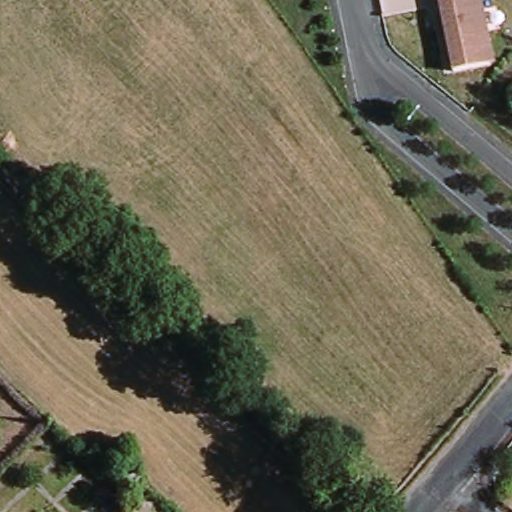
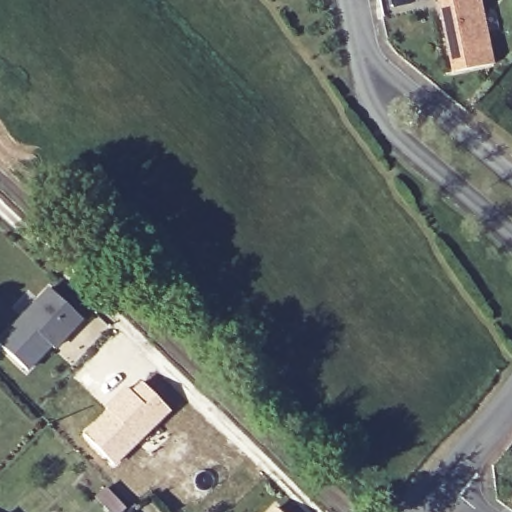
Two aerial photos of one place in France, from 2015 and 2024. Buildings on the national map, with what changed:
unchanged [(449,70),(435,0),(476,0),(488,63),(449,70)]
new [(45,346),(22,371),(0,351),(0,338),(45,290),(76,320),(65,333),(48,349),(45,346)]
new [(115,399),(141,379),(171,411),(115,465),(83,432),(115,399)]
new [(271,509),(274,512),(268,512),(271,509)]
unchanged [(128,511),(129,512),(127,512),(128,511)]

